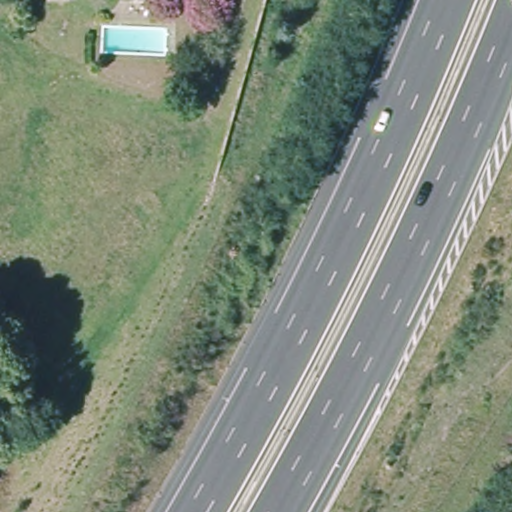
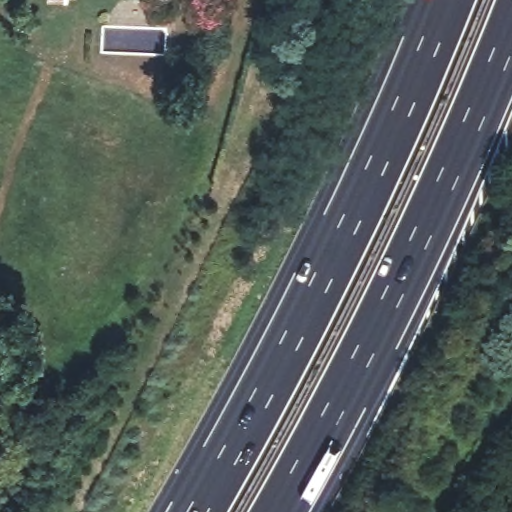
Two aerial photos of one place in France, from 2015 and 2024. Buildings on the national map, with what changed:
unchanged [(53,2),(53,0),(73,0),(73,2),(53,2)]

